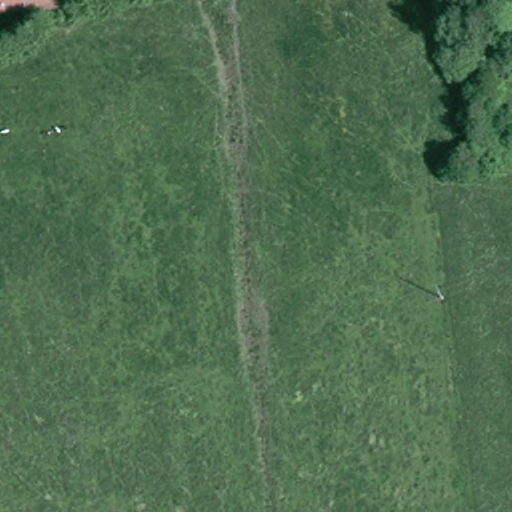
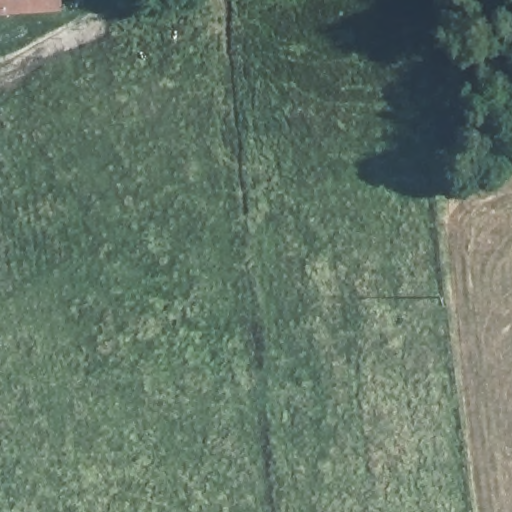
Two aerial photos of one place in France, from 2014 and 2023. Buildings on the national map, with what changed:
unchanged [(65,5),(0,12),(0,0),(65,0),(65,5)]

